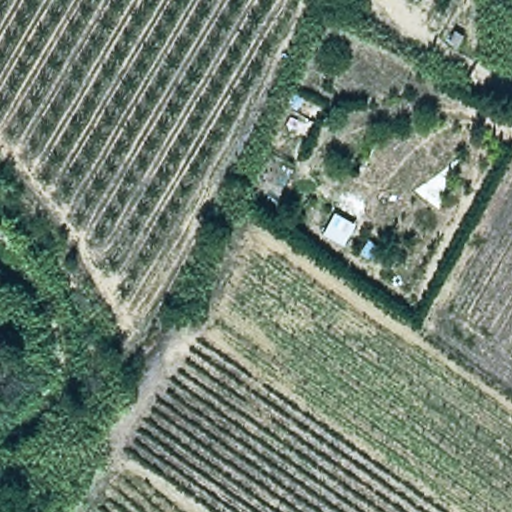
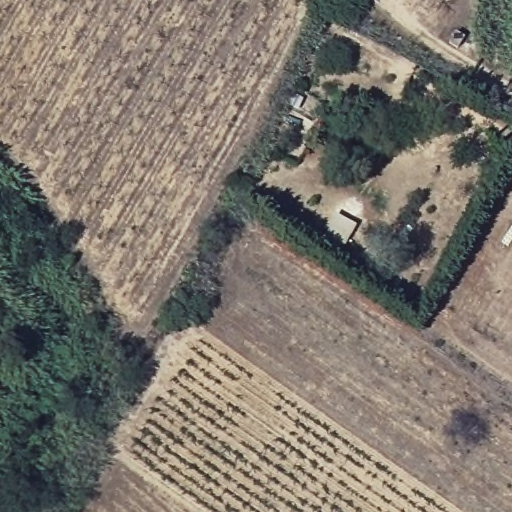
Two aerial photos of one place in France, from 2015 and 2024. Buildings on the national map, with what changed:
unchanged [(447,36),(454,26),(465,34),(458,43),(447,36)]

